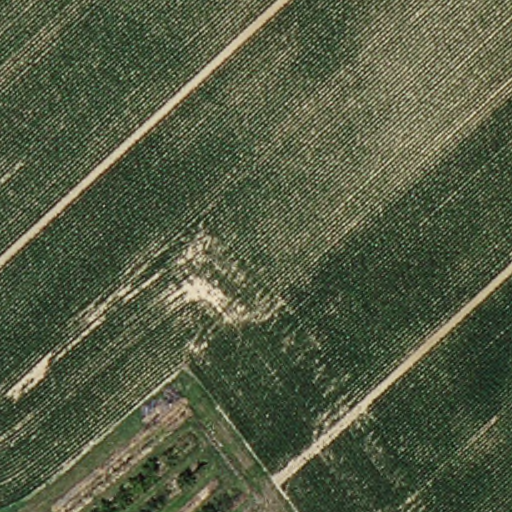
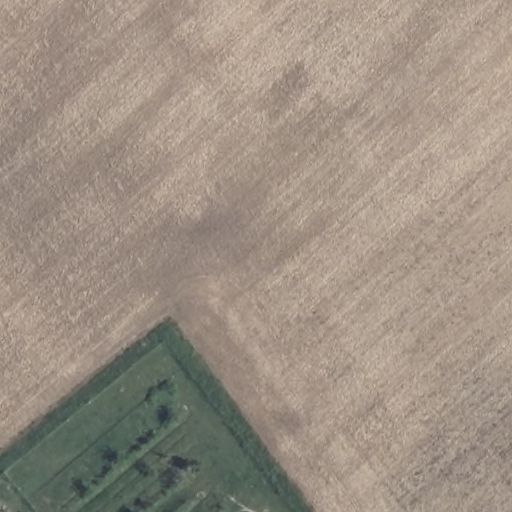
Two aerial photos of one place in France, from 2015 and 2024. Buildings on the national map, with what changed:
[]

